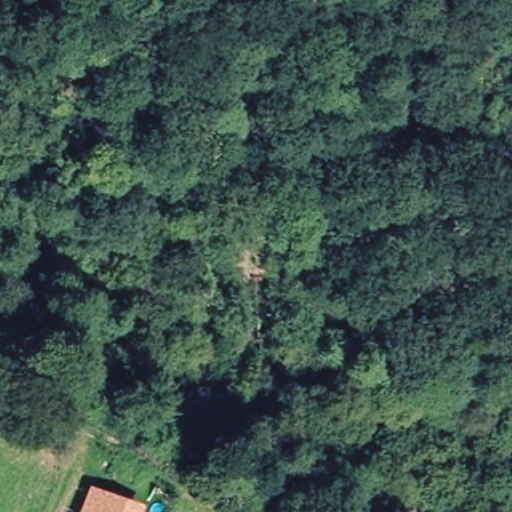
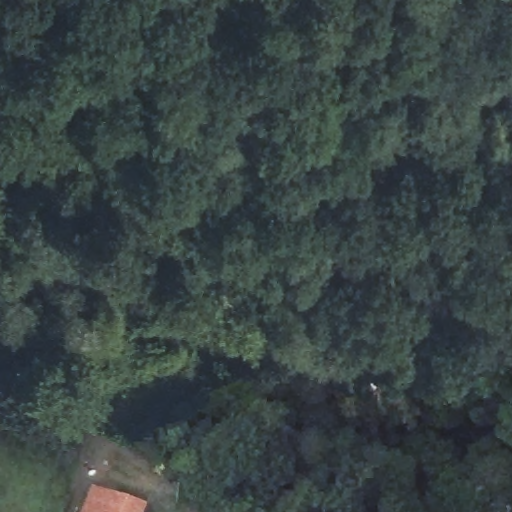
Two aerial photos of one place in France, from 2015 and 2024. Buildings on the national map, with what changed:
unchanged [(144,507),(142,512),(79,512),(89,485),(144,507)]

